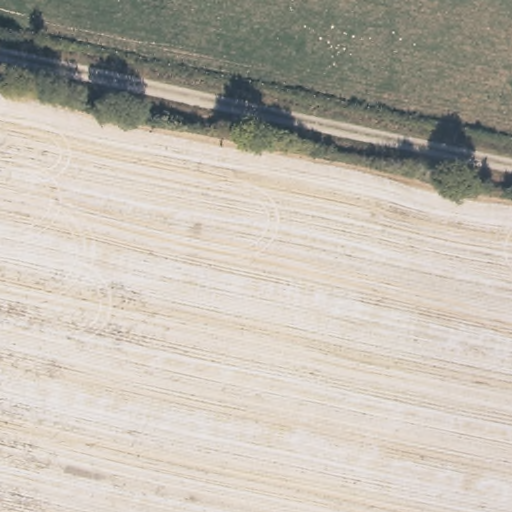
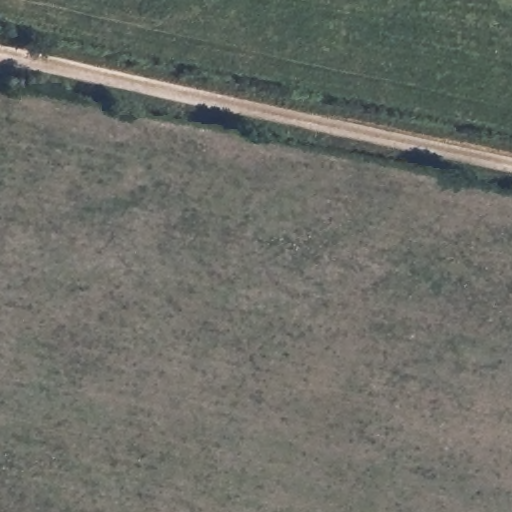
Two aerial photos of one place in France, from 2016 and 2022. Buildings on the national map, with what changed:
[]

